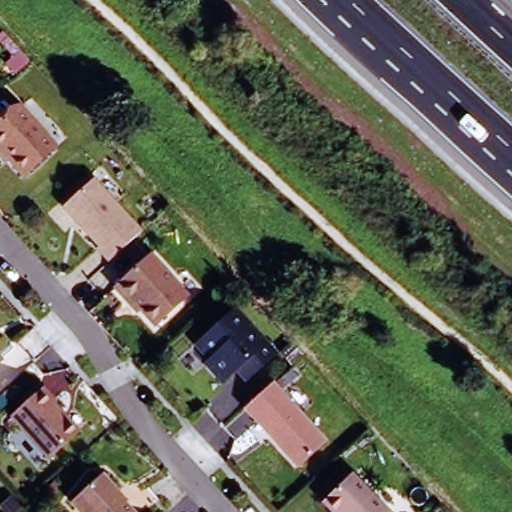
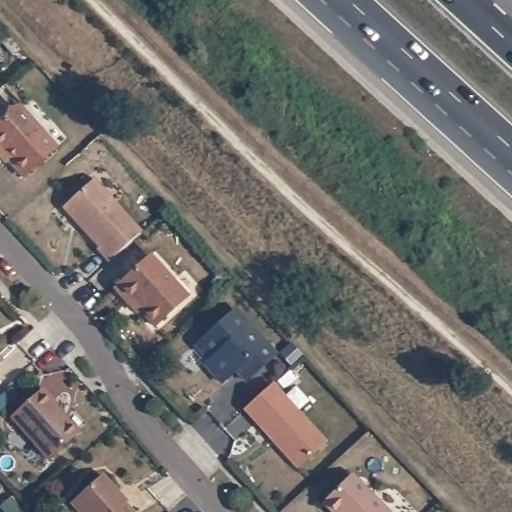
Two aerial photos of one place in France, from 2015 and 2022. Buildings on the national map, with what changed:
unchanged [(8,47),(0,39),(0,25),(15,41),(8,47)]
unchanged [(60,142),(28,171),(6,149),(3,151),(0,147),(0,123),(23,101),(60,142)]
unchanged [(86,249),(88,247),(53,208),(83,180),(131,232),(103,257),(98,261),(86,249)]
unchanged [(144,255),(181,296),(149,325),(128,302),(125,305),(109,288),(144,255)]
unchanged [(269,355),(239,381),(229,370),(215,383),(198,365),(203,361),(189,346),(228,310),(269,355)]
unchanged [(19,380),(25,387),(16,396),(9,389),(19,380)]
unchanged [(263,386),(266,383),(319,442),(291,467),(238,409),(263,386)]
unchanged [(5,424),(36,395),(47,407),(45,410),(71,438),(41,465),(5,424)]
unchanged [(379,512),(325,512),(316,502),(346,475),(379,512)]
unchanged [(96,476),(111,492),(109,494),(126,512),(73,512),(65,504),(96,476)]

